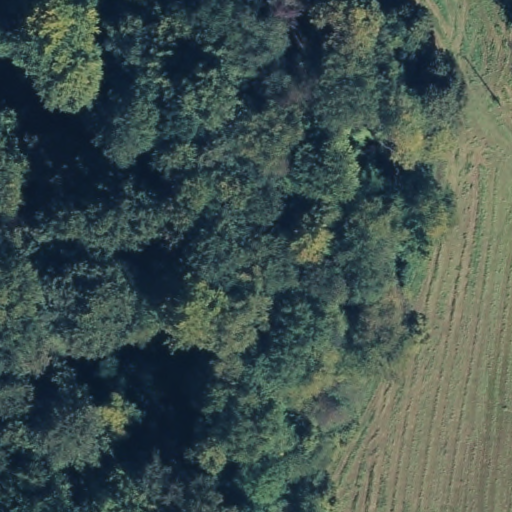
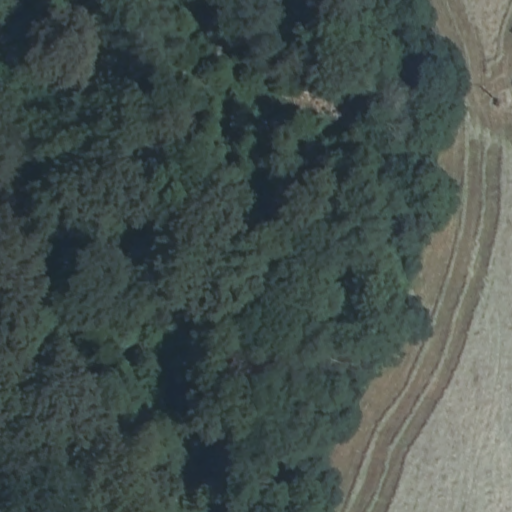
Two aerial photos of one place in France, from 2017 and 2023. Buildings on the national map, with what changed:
[]

